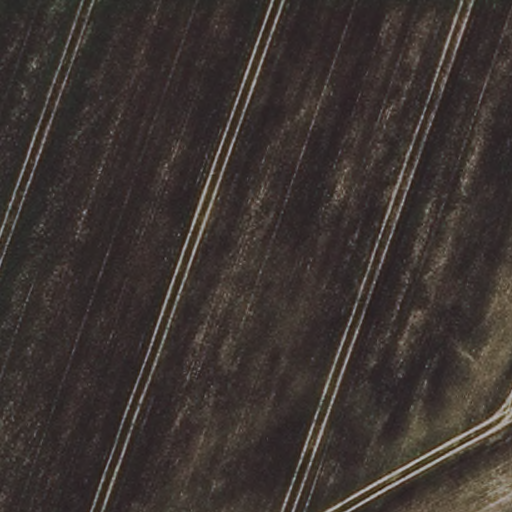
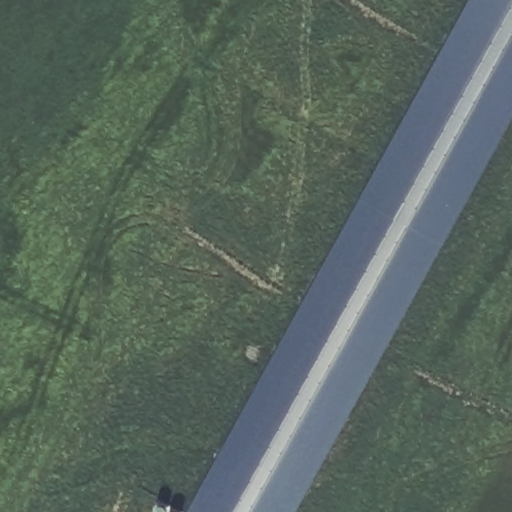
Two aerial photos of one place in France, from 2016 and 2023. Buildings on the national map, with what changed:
new [(468,0),(512,0),(512,120),(296,512),(186,512),(468,0)]

